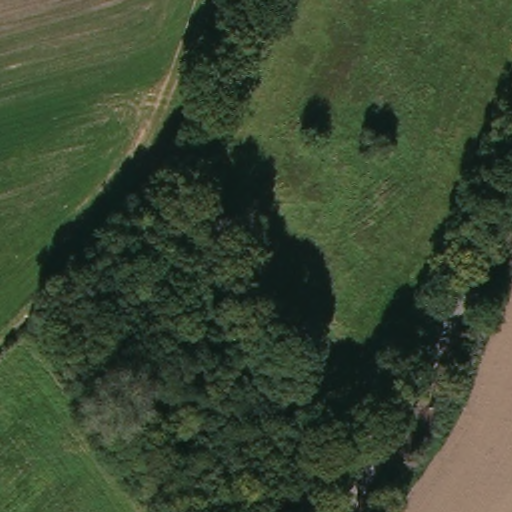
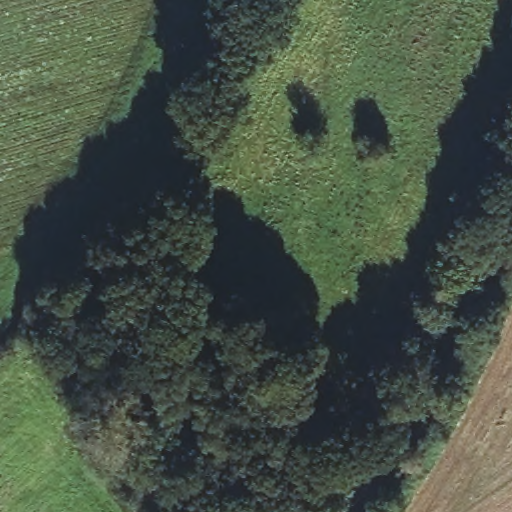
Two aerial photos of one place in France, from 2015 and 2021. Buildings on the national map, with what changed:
[]

